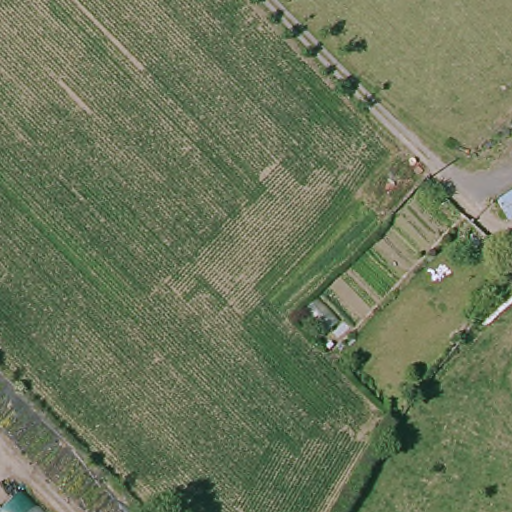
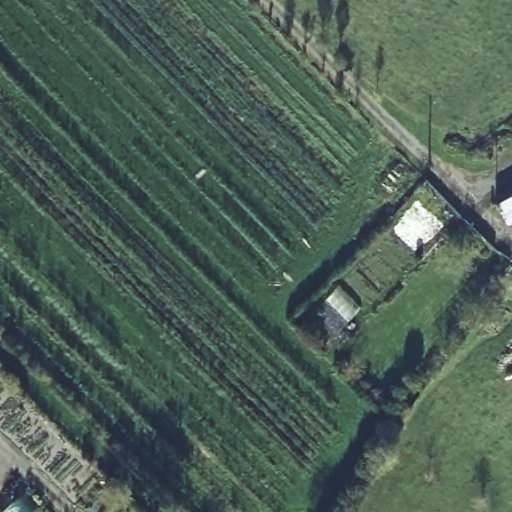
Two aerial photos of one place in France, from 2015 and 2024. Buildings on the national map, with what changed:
unchanged [(50,512),(2,512),(26,488),(50,512)]

